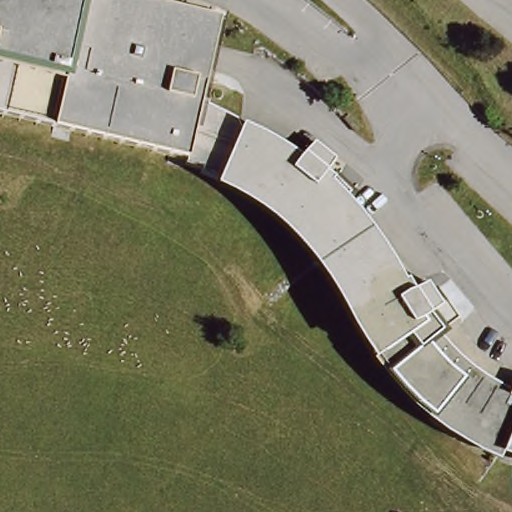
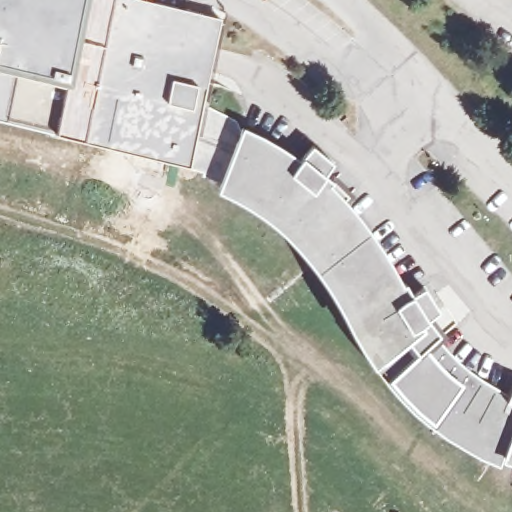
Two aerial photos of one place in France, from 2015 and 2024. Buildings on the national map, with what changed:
unchanged [(253,63),(215,53),(201,114),(238,130),(241,140),(264,152),(284,162),(298,172),(313,155),(331,171),(322,184),(344,204),(338,213),(353,230),(364,246),(371,255),(376,263),(384,276),(398,295),(402,293),(410,302),(422,295),(437,319),(427,326),(437,341),(431,350),(440,358),(451,371),(463,382),(476,393),(492,401),(506,407),(512,392),(512,463),(508,461),(488,455),(469,445),(447,430),(426,415),(410,402),(396,387),(383,370),(374,355),(359,323),(343,300),(332,283),(324,271),(314,256),(302,244),(292,234),(279,222),(269,214),(250,204),(235,195),(221,186),(223,180),(203,171),(203,166),(189,163),(186,167),(154,160),(154,155),(0,117),(0,0),(98,0),(244,35),(258,45),(253,63)]

